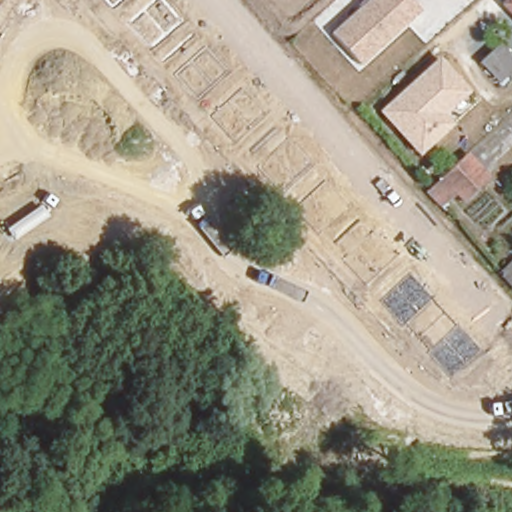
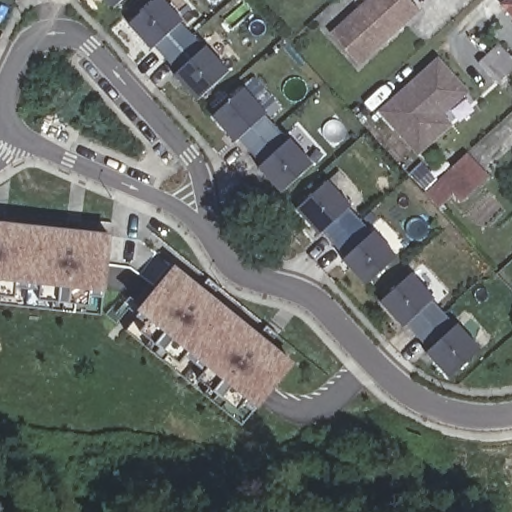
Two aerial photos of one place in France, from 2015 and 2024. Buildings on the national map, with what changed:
new [(107,0),(120,0),(113,6),(107,0)]
new [(163,0),(228,71),(196,100),(172,76),(179,69),(156,43),(150,49),(128,24),(154,0),(163,0)]
unchanged [(329,32),(366,0),(409,0),(420,13),(360,66),(329,32)]
unchanged [(512,0),(512,13),(502,4),(506,0),(512,0)]
unchanged [(504,71),(496,79),(476,56),(498,36),(512,51),(512,73),(508,76),(504,71)]
unchanged [(417,151),(382,112),(438,61),(473,101),(417,151)]
new [(242,90),(310,164),(280,193),(257,167),(262,163),(239,136),(233,142),(211,117),(242,90)]
unchanged [(487,178),(460,201),(454,197),(438,209),(425,196),(466,156),(487,178)]
new [(342,261),(349,254),(324,229),(319,235),(296,209),(326,182),(396,256),(365,285),(342,261)]
new [(111,235),(106,291),(93,291),(92,306),(44,300),(44,286),(18,283),(17,296),(0,295),(0,223),(111,235)]
new [(174,265),(294,365),(259,411),(248,423),(198,379),(208,368),(190,354),(179,366),(141,333),(150,322),(138,311),(174,265)]
unchanged [(512,286),(503,276),(512,268),(512,286)]
new [(409,274),(479,349),(448,378),(426,354),(431,350),(406,323),(402,327),(379,303),(409,274)]

